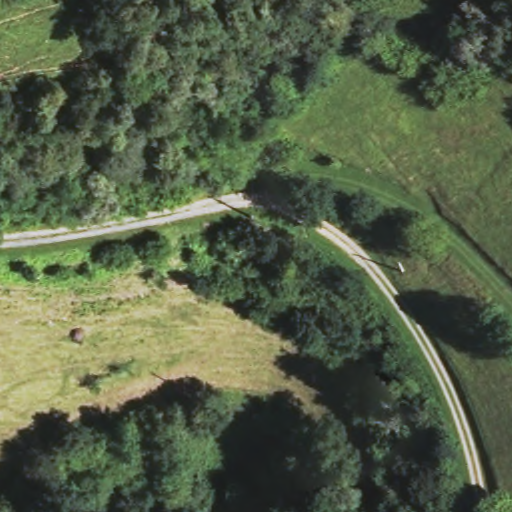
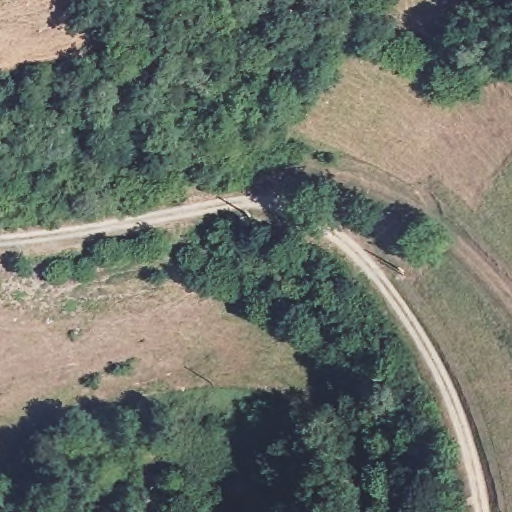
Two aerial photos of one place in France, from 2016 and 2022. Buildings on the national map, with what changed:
[]

